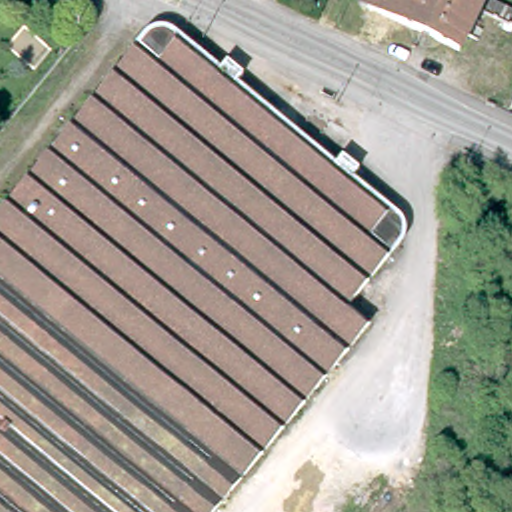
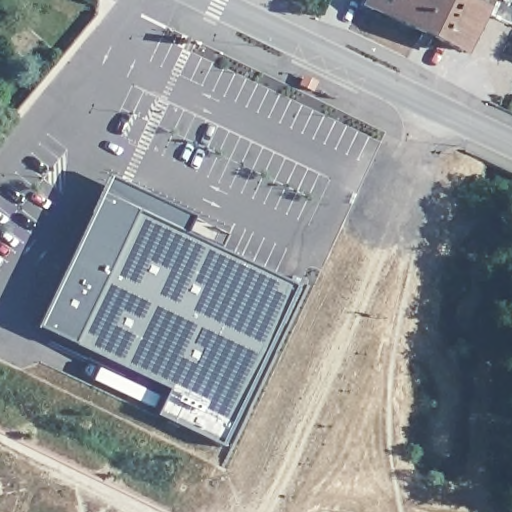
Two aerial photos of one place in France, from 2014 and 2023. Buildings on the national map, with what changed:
unchanged [(462,48),(371,5),(373,0),(472,0),(482,5),(481,9),(462,48)]
unchanged [(509,17),(482,5),(483,0),(506,0),(512,3),(512,9),(509,17)]
demolished [(158,27),(176,29),(397,213),(404,229),(394,252),(348,302),(373,325),(217,512),(0,512),(0,207),(139,37),(158,27)]
new [(154,415),(166,389),(32,326),(106,176),(188,216),(181,231),(298,284),(219,447),(154,415)]

